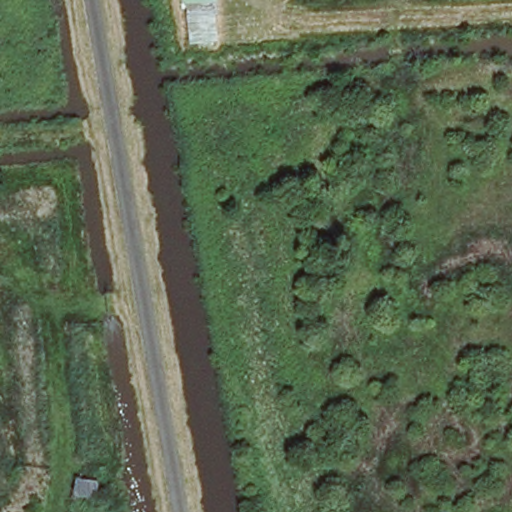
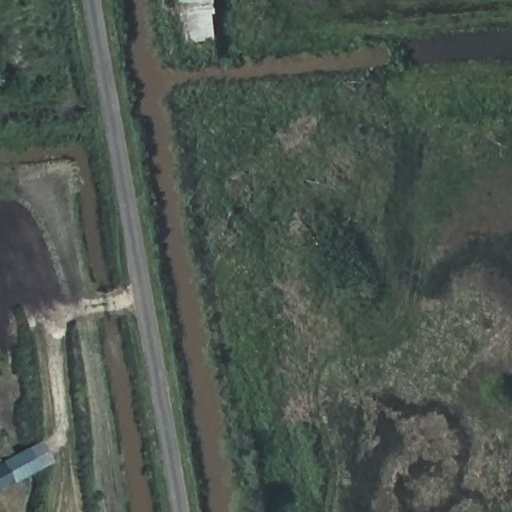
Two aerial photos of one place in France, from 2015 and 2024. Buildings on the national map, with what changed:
unchanged [(190,46),(186,2),(215,0),(220,43),(190,46)]

